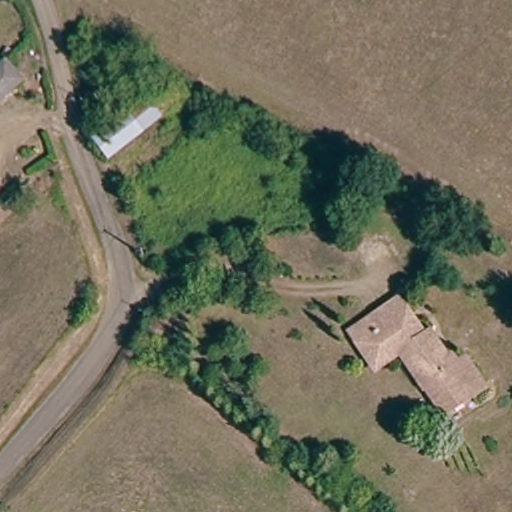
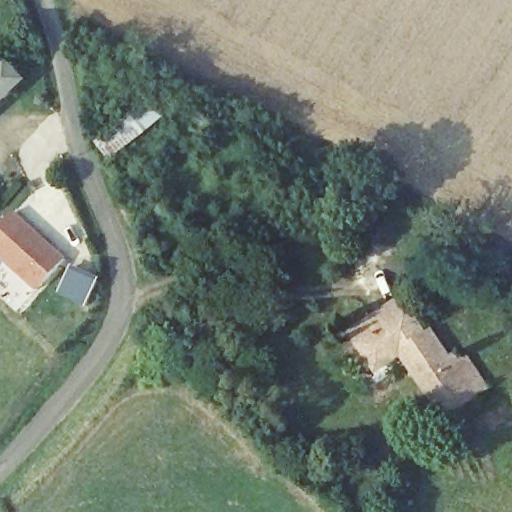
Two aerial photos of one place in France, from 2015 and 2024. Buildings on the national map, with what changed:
unchanged [(0,111),(0,74),(14,60),(24,69),(7,88),(16,96),(0,111)]
unchanged [(86,133),(163,77),(180,100),(107,160),(86,133)]
new [(39,293),(0,258),(0,232),(16,214),(67,260),(39,293)]
unchanged [(448,408),(429,384),(424,389),(399,356),(376,373),(349,339),(396,302),(423,335),(429,331),(455,363),(464,354),(488,384),(476,394),(453,413),(448,408)]

